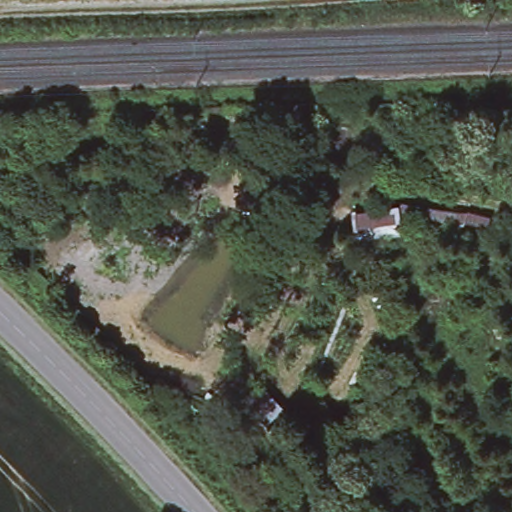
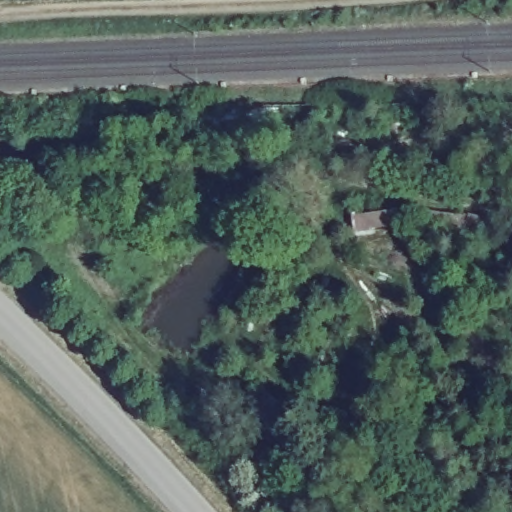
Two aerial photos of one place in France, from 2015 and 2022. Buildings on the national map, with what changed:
unchanged [(404,208),(490,224),(487,236),(402,224),(402,232),(356,237),(352,216),(404,208)]
unchanged [(240,399),(259,382),(287,409),(264,425),(240,399)]

